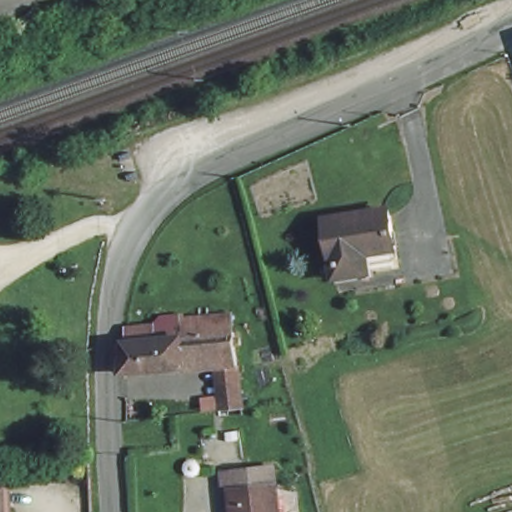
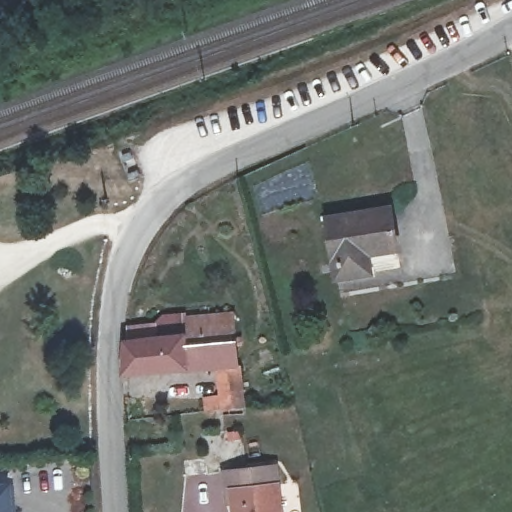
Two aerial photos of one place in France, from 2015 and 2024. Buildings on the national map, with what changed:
unchanged [(366,254),(366,264),(335,270),(328,213),(386,204),(395,241),(397,250),(366,254)]
unchanged [(169,315),(187,315),(231,314),(231,331),(237,331),(246,407),(235,408),(224,409),(222,368),(185,371),(184,367),(123,369),(124,367),(124,344),(128,344),(129,325),(135,325),(157,324),(169,315)]
unchanged [(238,512),(235,494),(229,495),(223,476),(276,466),(285,512),(238,512)]
unchanged [(0,512),(0,481),(14,480),(17,512),(0,512)]

